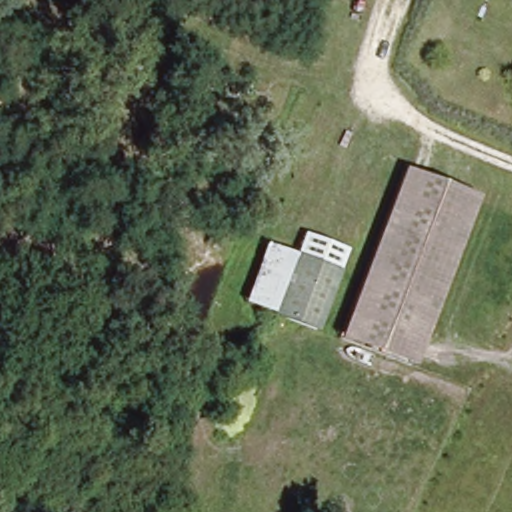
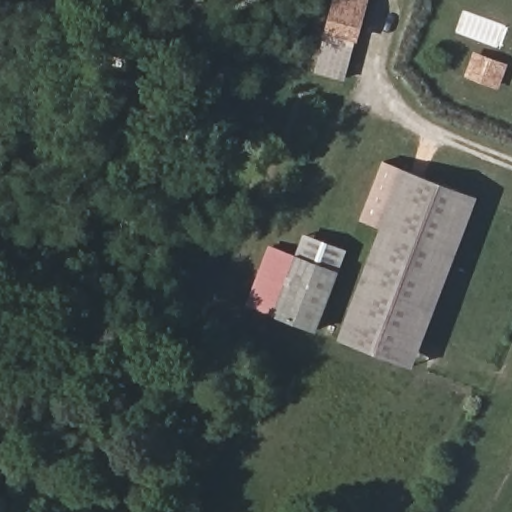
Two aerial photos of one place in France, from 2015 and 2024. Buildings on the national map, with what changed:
new [(334,0),(369,0),(357,41),(345,80),(314,73),(334,0)]
unchanged [(417,343),(345,312),(405,170),(451,190),(478,201),(455,255),(417,343)]
unchanged [(244,302),(269,243),(297,255),(272,313),(244,302)]
unchanged [(272,313),(297,255),(334,271),(310,330),(272,313)]
unchanged [(345,312),(417,343),(405,371),(333,340),(345,312)]

